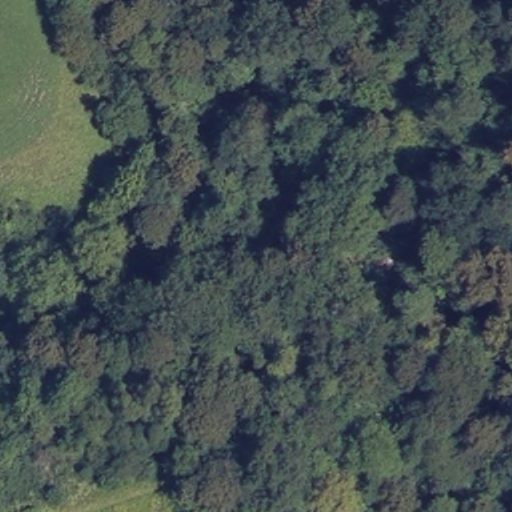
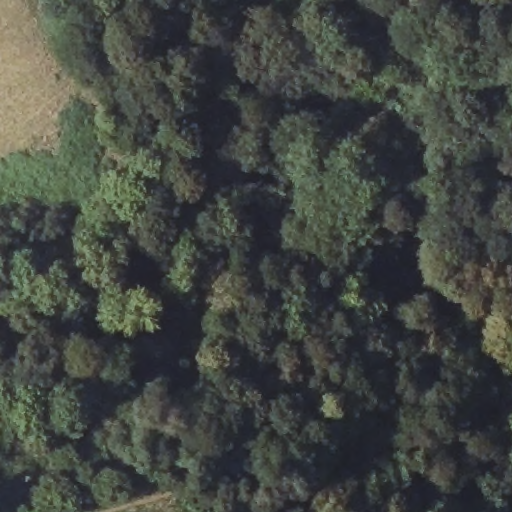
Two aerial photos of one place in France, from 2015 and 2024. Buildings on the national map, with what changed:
unchanged [(344,96),(361,114),(334,136),(318,119),(344,96)]

